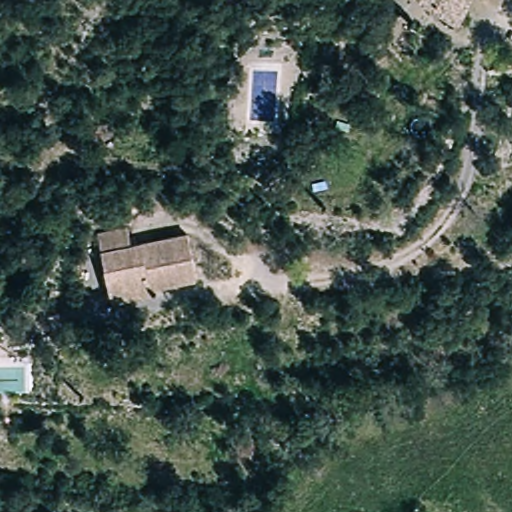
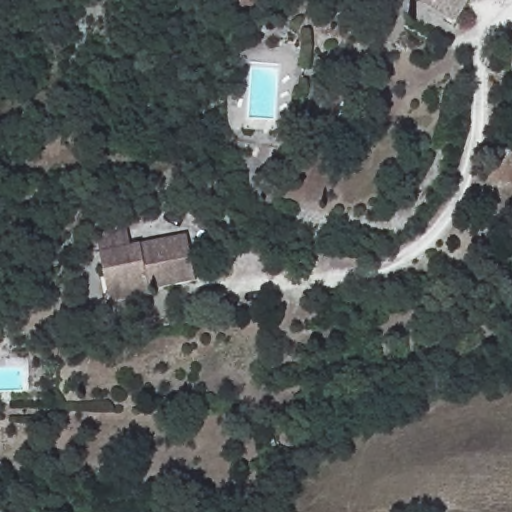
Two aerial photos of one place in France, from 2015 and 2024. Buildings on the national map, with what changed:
unchanged [(457,22),(419,0),(469,0),(457,22)]
unchanged [(127,225),(133,249),(181,236),(193,286),(117,305),(98,233),(127,225)]

